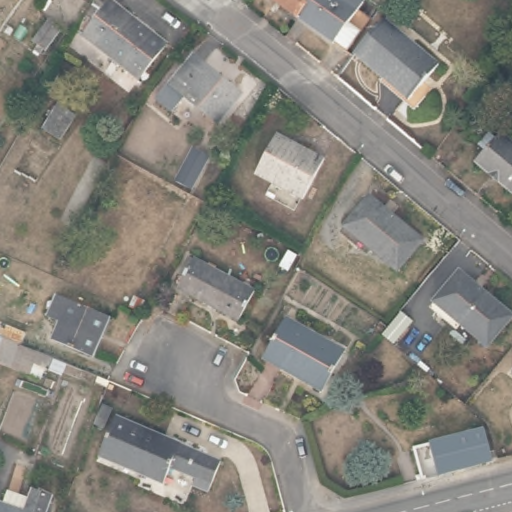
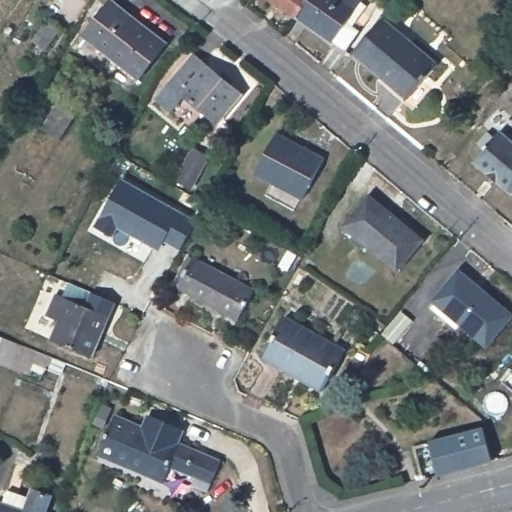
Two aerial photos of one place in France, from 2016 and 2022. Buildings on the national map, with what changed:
unchanged [(271,0),(309,0),(296,19),(271,0)]
unchanged [(343,54),(337,49),(303,24),(296,19),(309,0),(363,0),(356,10),(368,19),(343,54)]
unchanged [(167,44),(140,80),(83,37),(111,1),(167,44)]
unchanged [(385,16),(441,62),(410,99),(355,52),(385,16)]
unchanged [(42,50),(38,56),(32,51),(36,45),(32,42),(48,20),(60,30),(44,51),(42,50)]
unchanged [(243,100),(220,130),(186,104),(174,120),(157,106),(191,61),(243,100)]
unchanged [(327,159),(306,199),(257,174),(278,134),(327,159)]
unchanged [(512,193),(507,199),(470,166),(479,155),(472,150),(484,136),(491,142),(496,136),(512,150),(512,193)]
unchanged [(178,183),(196,150),(206,155),(209,158),(191,190),(178,183)]
new [(181,250),(166,241),(160,251),(121,229),(116,237),(96,226),(122,178),(198,220),(181,250)]
unchanged [(423,242),(397,274),(344,230),(369,198),(423,242)]
unchanged [(253,290),(238,320),(176,287),(192,258),(253,290)]
unchanged [(512,318),(487,348),(433,303),(458,273),(512,318)]
unchanged [(107,317),(91,356),(52,341),(59,323),(46,318),(55,296),(107,317)]
demolished [(144,300),(140,308),(128,304),(132,296),(144,300)]
unchanged [(344,348),(322,390),(262,357),(285,316),(344,348)]
unchanged [(23,373),(4,366),(0,365),(0,324),(16,330),(12,342),(13,343),(32,351),(43,355),(33,378),(23,373)]
unchanged [(41,367),(45,356),(55,360),(58,361),(54,372),(41,367)]
unchanged [(194,484),(196,477),(171,467),(164,483),(99,456),(115,415),(181,442),(180,444),(213,457),(222,461),(209,490),(200,486),(194,484)]
unchanged [(420,478),(412,446),(483,428),(492,461),(420,478)]
unchanged [(27,501),(29,493),(48,500),(43,512),(0,512),(0,506),(1,506),(4,498),(6,493),(27,501)]

